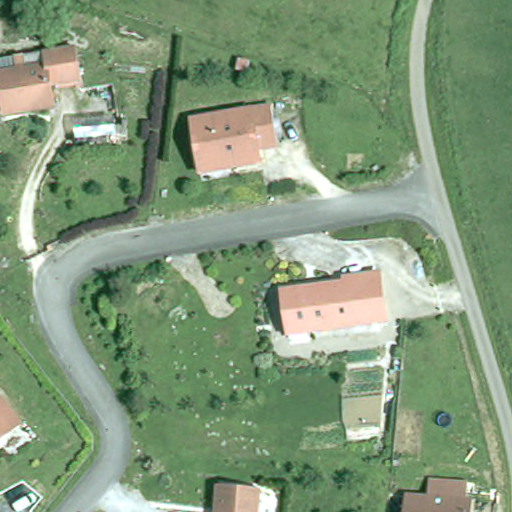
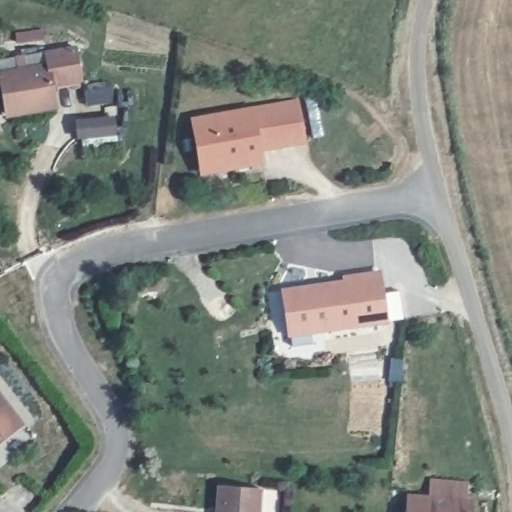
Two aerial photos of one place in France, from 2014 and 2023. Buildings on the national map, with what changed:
unchanged [(6,111),(0,77),(0,58),(16,56),(70,46),(76,80),(52,83),(55,103),(24,109),(6,111)]
new [(271,106),(299,101),(305,141),(277,146),(271,106)]
unchanged [(189,118),(271,106),(277,146),(258,149),(260,161),(226,167),(197,170),(196,158),(189,118)]
unchanged [(158,222),(156,213),(168,211),(169,220),(158,222)]
unchanged [(284,326),(279,290),(306,287),(306,291),(312,290),(312,286),(342,282),(342,277),(378,272),(385,323),(306,332),(285,334),(284,326)]
unchanged [(19,424),(0,437),(0,400),(19,424)]
unchanged [(218,489),(260,491),(259,512),(217,512),(218,489)]
unchanged [(469,512),(406,512),(407,499),(470,503),(469,512)]

